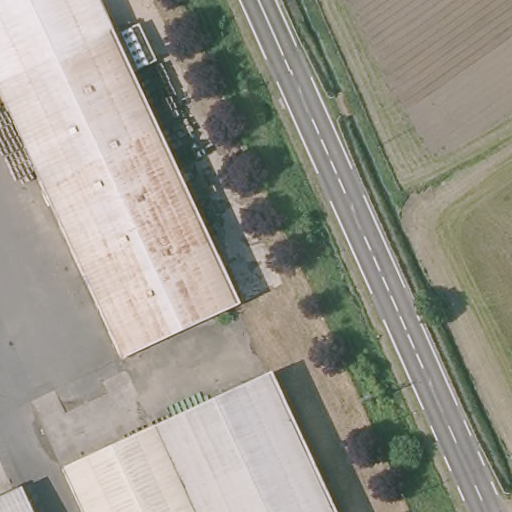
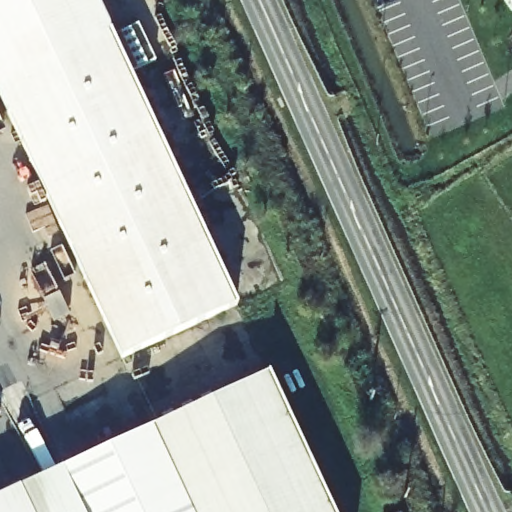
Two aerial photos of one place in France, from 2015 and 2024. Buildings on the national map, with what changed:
unchanged [(230,306),(115,358),(24,144),(0,91),(0,0),(92,0),(230,306)]
unchanged [(185,512),(146,425),(265,373),(324,512),(185,512)]
unchanged [(185,512),(77,512),(58,466),(146,425),(185,512)]
new [(58,466),(77,512),(29,512),(18,489),(58,466)]
unchanged [(0,512),(0,497),(18,489),(29,512),(0,512)]

